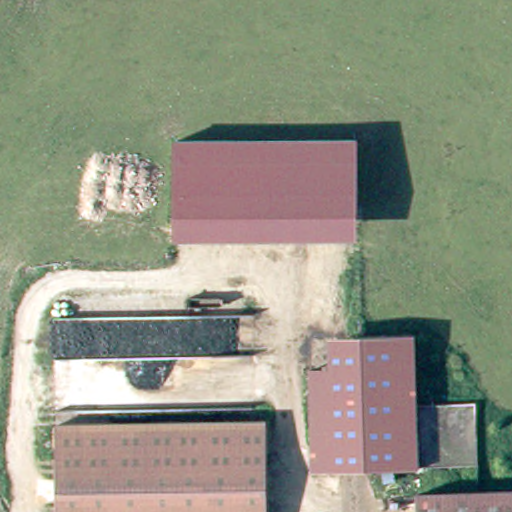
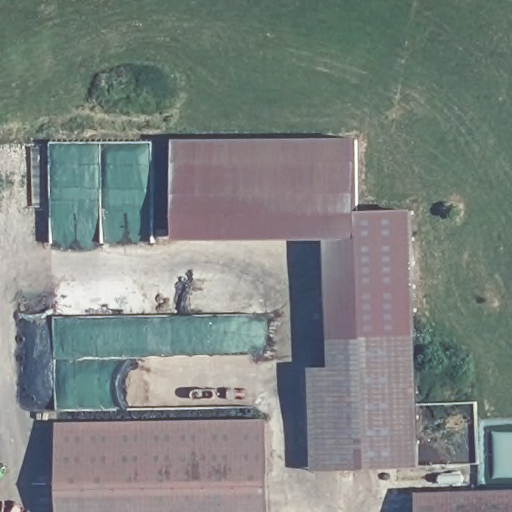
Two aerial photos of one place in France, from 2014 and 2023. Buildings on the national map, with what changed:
unchanged [(175,140),(348,139),(357,139),(357,180),(356,243),(175,242),(175,140)]
new [(414,209),(417,333),(330,337),(326,242),(356,243),(357,209),(414,209)]
unchanged [(331,366),(330,337),(417,333),(421,467),(314,470),(310,367),(331,366)]
unchanged [(275,421),(275,512),(65,512),(63,423),(275,421)]
unchanged [(512,490),(512,512),(424,512),(423,492),(512,490)]

